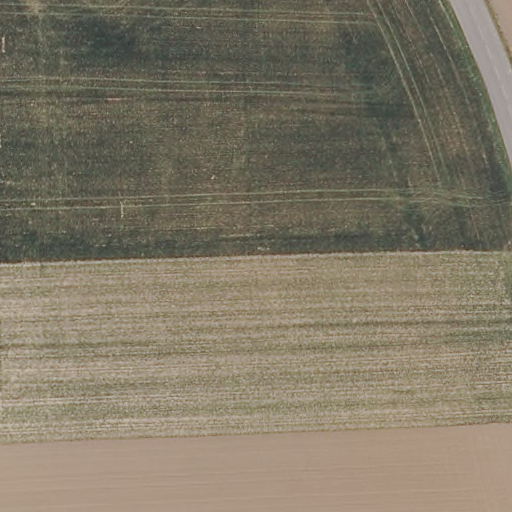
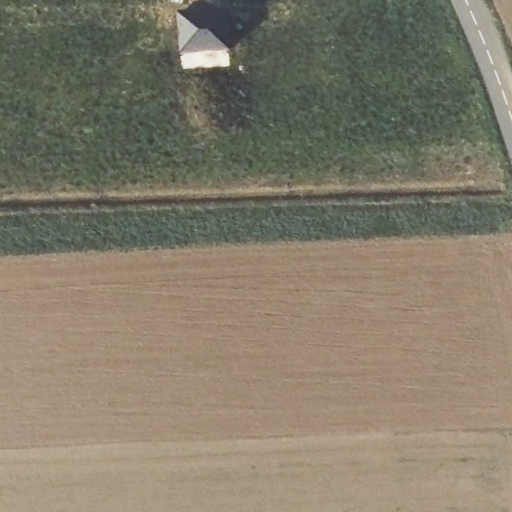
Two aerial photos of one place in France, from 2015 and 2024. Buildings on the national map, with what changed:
new [(229,52),(181,56),(177,13),(227,13),(229,52)]

